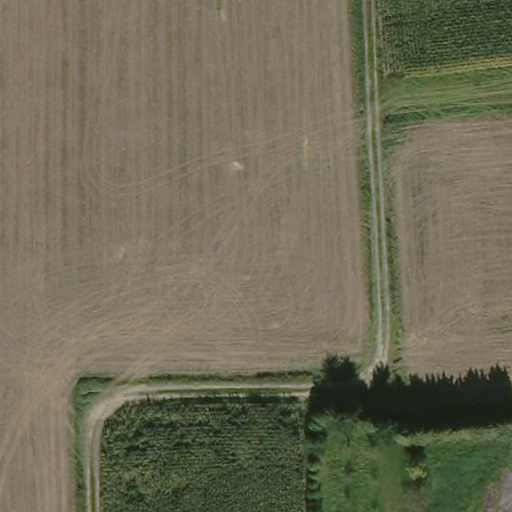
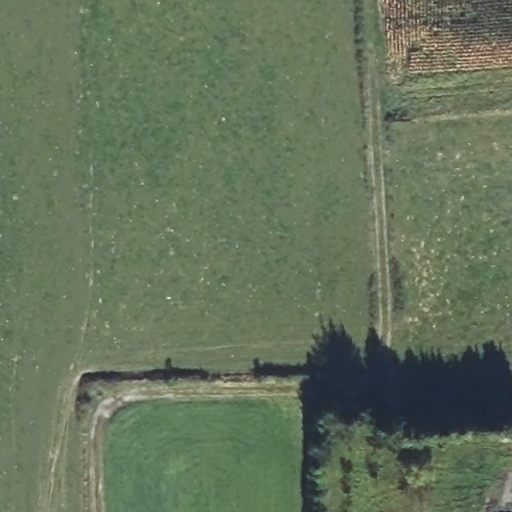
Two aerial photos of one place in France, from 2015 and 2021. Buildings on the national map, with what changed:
[]

